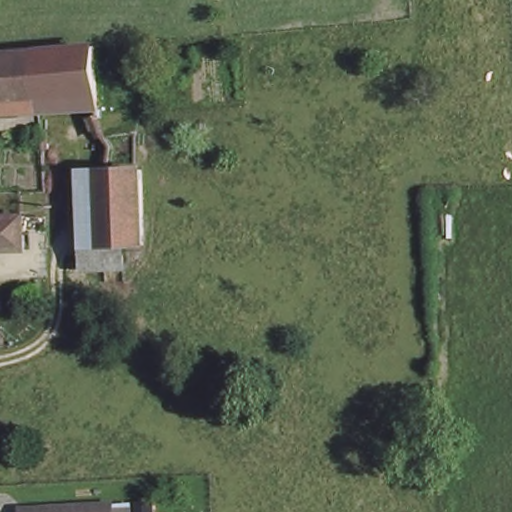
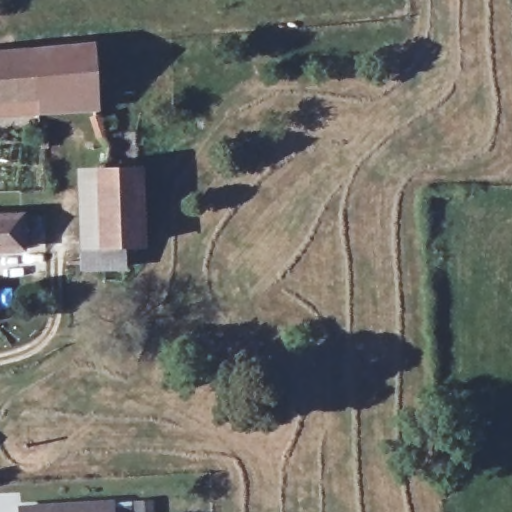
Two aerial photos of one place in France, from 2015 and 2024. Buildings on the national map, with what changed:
unchanged [(36,103),(36,100),(35,54),(95,51),(98,100),(36,103)]
unchanged [(0,57),(35,54),(36,100),(36,103),(0,105),(0,57)]
unchanged [(81,170),(123,168),(128,215),(83,216),(81,170)]
unchanged [(0,247),(0,203),(20,203),(20,215),(23,215),(23,246),(0,247)]
unchanged [(86,268),(85,244),(83,216),(128,215),(131,242),(105,243),(106,267),(86,268)]
unchanged [(22,506),(110,502),(113,506),(130,506),(130,512),(22,512),(22,506)]

